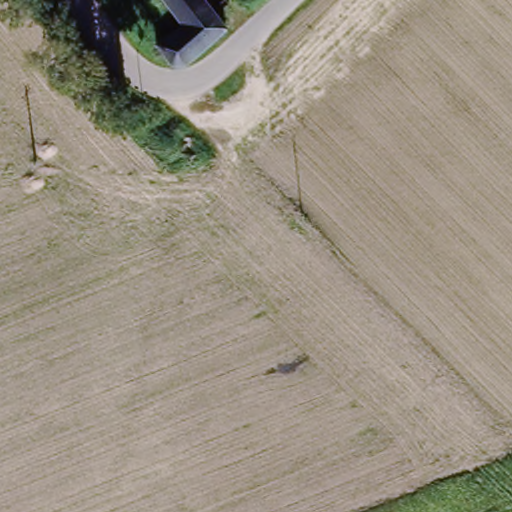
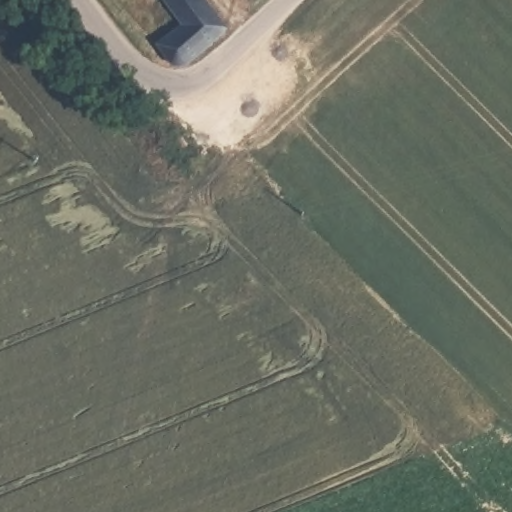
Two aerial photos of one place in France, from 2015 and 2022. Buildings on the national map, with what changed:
unchanged [(195,16),(182,0),(221,0),(237,20),(189,61),(170,35),(195,16)]

